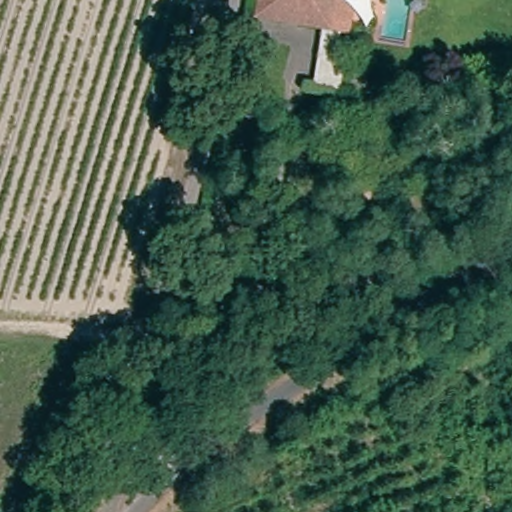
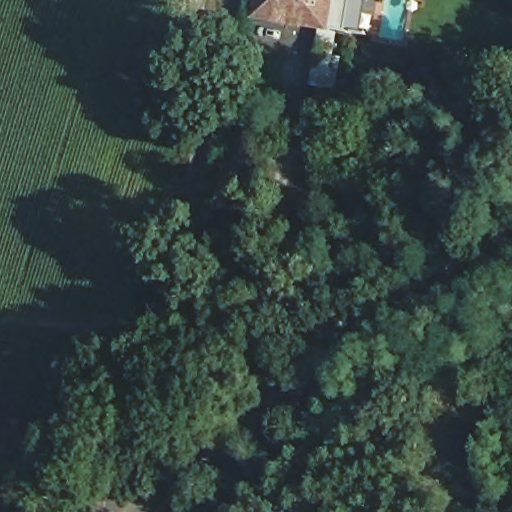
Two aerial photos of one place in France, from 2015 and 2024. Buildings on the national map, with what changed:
unchanged [(331,36),(259,22),(263,0),(357,0),(351,39),(331,36)]

